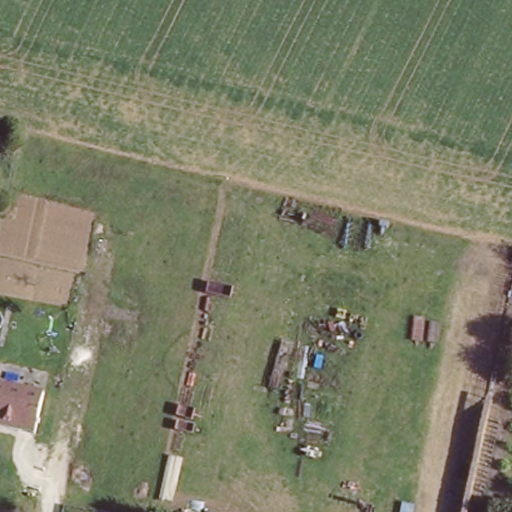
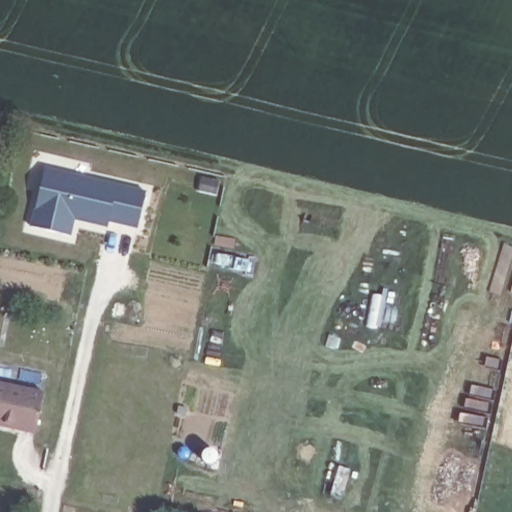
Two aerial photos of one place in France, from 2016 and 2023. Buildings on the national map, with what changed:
new [(46,168),(146,191),(137,229),(109,223),(108,228),(75,221),(71,236),(31,226),(46,168)]
unchanged [(0,385),(43,392),(34,437),(0,430),(0,385)]

